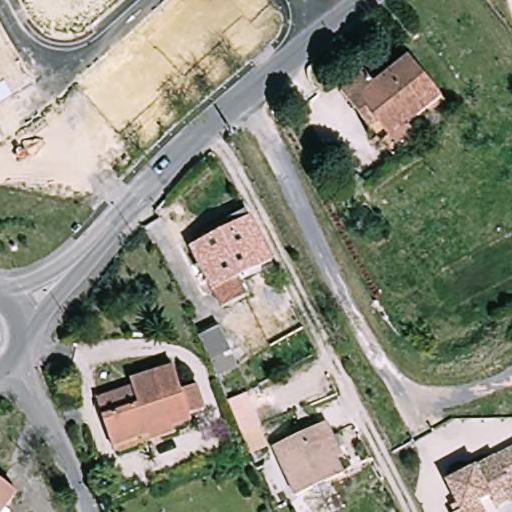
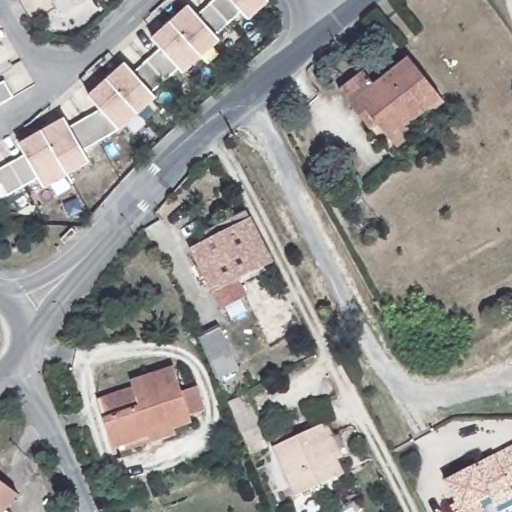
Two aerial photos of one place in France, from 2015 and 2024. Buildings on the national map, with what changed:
new [(26,153),(21,143),(66,117),(71,125),(102,108),(90,95),(127,62),(135,71),(162,47),(154,37),(190,4),(199,14),(214,0),(270,0),(271,0),(251,18),(243,10),(217,34),(221,39),(185,72),(180,67),(153,92),(157,96),(121,129),(120,128),(84,148),(91,160),(44,187),(39,177),(8,194),(2,184),(0,185),(0,169),(26,153)]
unchanged [(395,157),(383,141),(373,128),(341,84),(369,64),(380,78),(414,52),(446,95),(410,122),(421,137),(395,157)]
unchanged [(5,80),(13,94),(0,102),(0,83),(5,80)]
unchanged [(248,280),(257,296),(232,310),(200,251),(218,241),(214,235),(253,214),(278,264),(248,280)]
unchanged [(218,370),(208,345),(207,342),(225,334),(236,362),(218,370)]
unchanged [(163,446),(157,430),(115,446),(100,407),(137,393),(134,386),(176,370),(184,392),(196,388),(205,412),(173,424),(178,440),(163,446)]
unchanged [(248,449),(240,427),(258,418),(268,440),(248,449)]
unchanged [(275,447),(328,423),(333,435),(348,468),(340,472),(295,492),(275,447)]
unchanged [(512,445),(512,497),(487,510),(488,512),(450,512),(449,509),(458,505),(446,478),(510,442),(512,445)]
unchanged [(22,489),(10,506),(16,510),(14,512),(0,512),(0,475),(22,489)]

